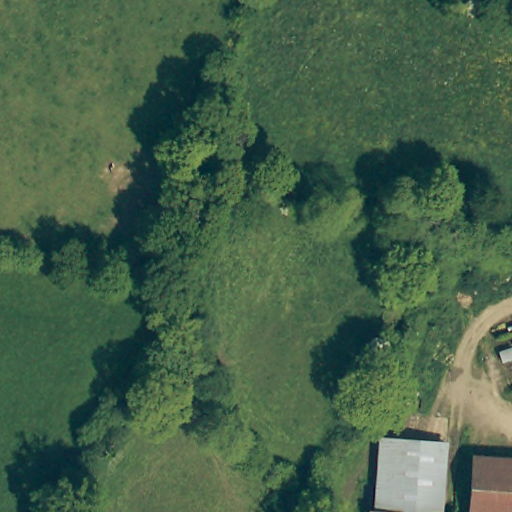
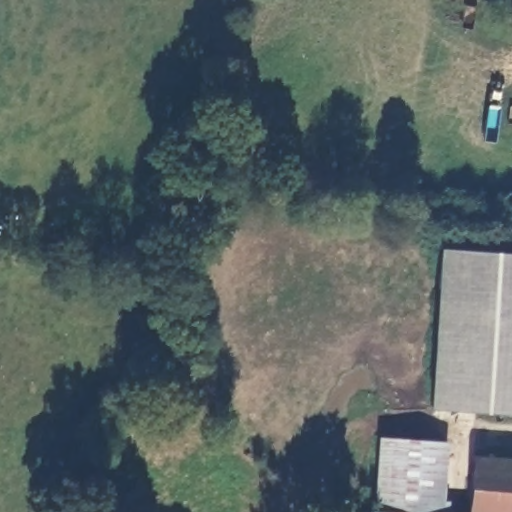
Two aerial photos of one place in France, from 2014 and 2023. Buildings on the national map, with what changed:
new [(431,408),(441,249),(512,253),(512,413),(431,408)]
unchanged [(372,444),(442,448),(438,512),(368,512),(372,444)]
new [(472,456),(512,459),(512,512),(469,512),(472,456)]

